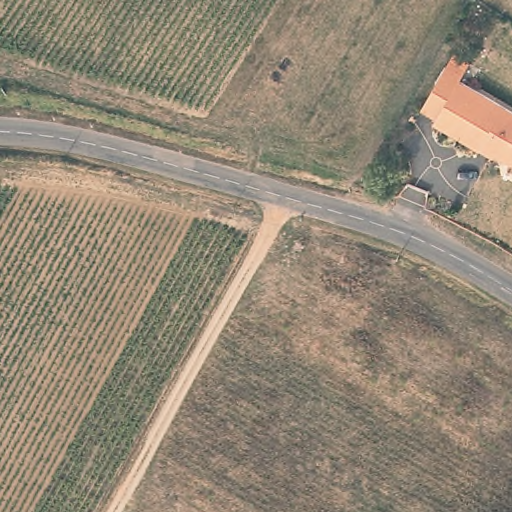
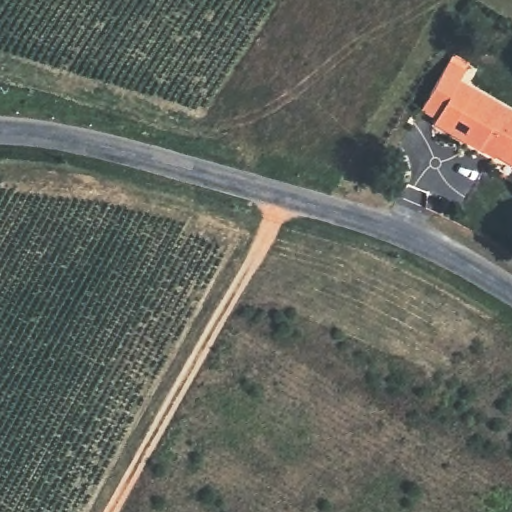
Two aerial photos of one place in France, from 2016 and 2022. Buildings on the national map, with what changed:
unchanged [(462,80),(512,109),(512,155),(498,147),(499,143),(489,137),(484,145),(436,118),(439,114),(424,106),(449,62),(466,72),(462,80)]

